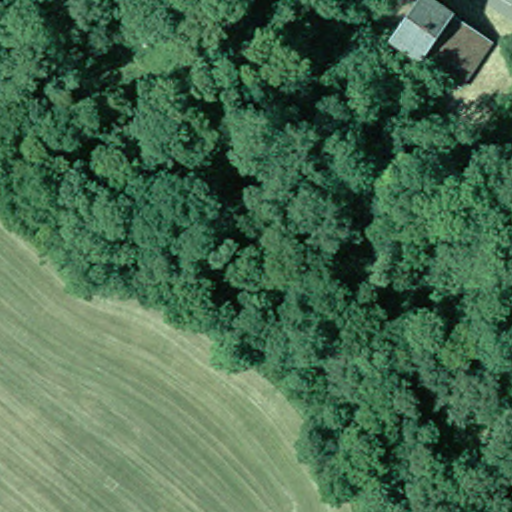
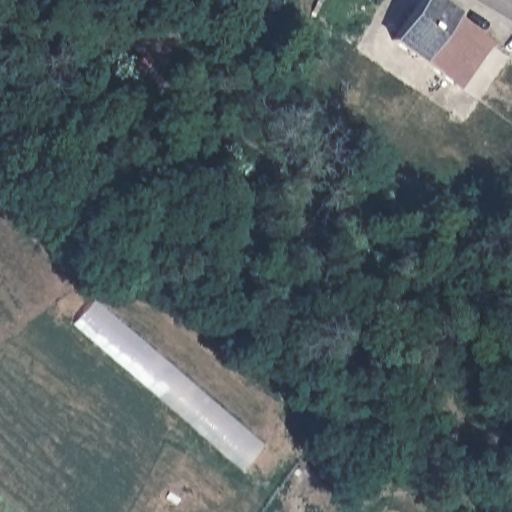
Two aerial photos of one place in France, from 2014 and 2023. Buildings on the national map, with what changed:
unchanged [(455,90),(388,44),(421,0),(424,0),(488,42),(455,90)]
new [(265,444),(244,468),(74,322),(95,298),(265,444)]

